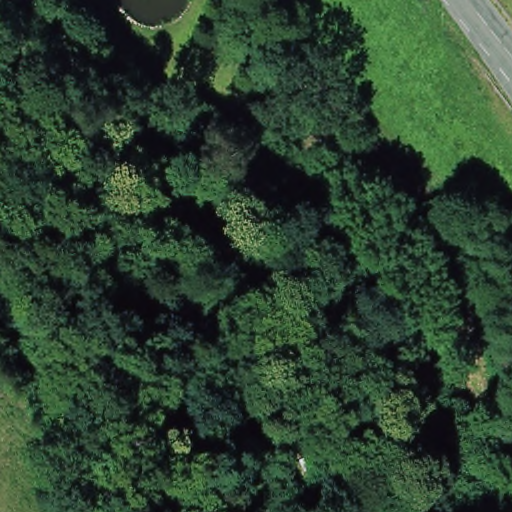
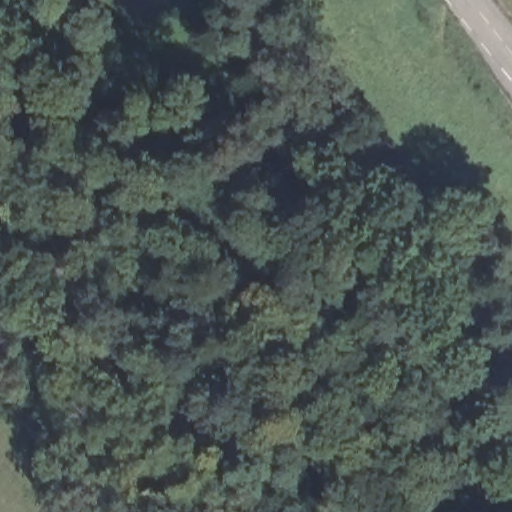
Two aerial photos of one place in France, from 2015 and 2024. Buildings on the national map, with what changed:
[]

